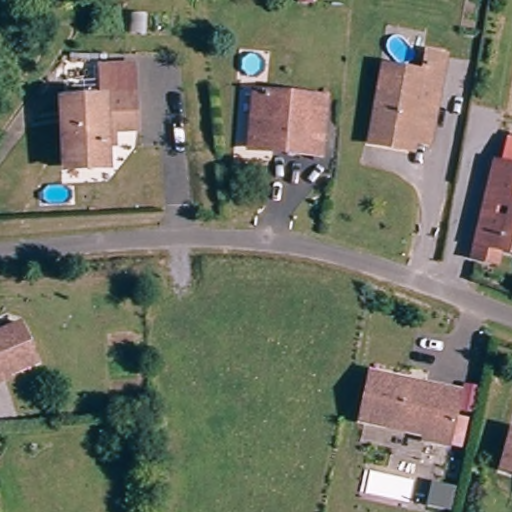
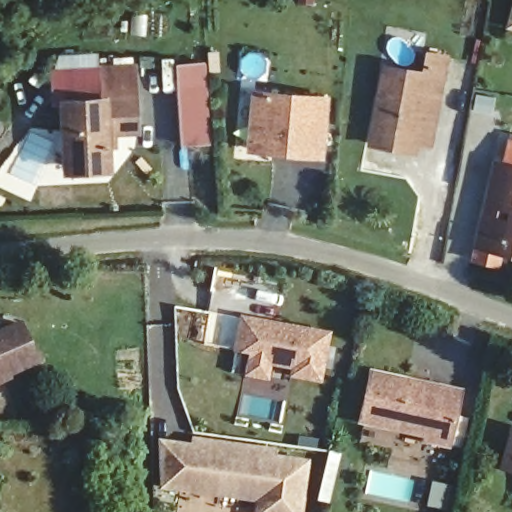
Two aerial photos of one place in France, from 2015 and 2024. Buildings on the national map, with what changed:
new [(506,27),(512,2),(512,29),(506,27)]
new [(207,60),(207,51),(217,50),(220,72),(208,72),(211,144),(180,145),(174,62),(207,60)]
unchanged [(372,138),(374,127),(386,61),(428,68),(431,52),(446,54),(437,102),(431,138),(415,135),(414,145),(372,138)]
unchanged [(58,97),(96,92),(97,64),(138,62),(142,131),(114,134),(115,169),(61,171),(58,97)]
new [(51,105),(49,68),(97,66),(96,92),(58,97),(59,105),(51,105)]
unchanged [(257,148),(261,90),(330,97),(326,155),(307,153),(280,150),(257,148)]
unchanged [(507,136),(512,137),(512,172),(501,170),(507,136)]
unchanged [(505,251),(502,263),(477,258),(480,243),(495,169),(501,170),(512,172),(512,253),(505,251)]
new [(291,379),(293,372),(273,367),(269,382),(246,377),(250,357),(235,354),(242,317),(332,333),(323,386),(291,379)]
unchanged [(44,358),(0,377),(0,331),(26,320),(44,358)]
unchanged [(455,445),(441,442),(415,437),(417,430),(356,418),(366,370),(400,377),(416,381),(453,388),(447,415),(461,418),(455,445)]
unchanged [(458,382),(473,385),(467,410),(452,407),(458,382)]
unchanged [(499,457),(508,420),(512,421),(512,460),(499,457)]
new [(255,504),(155,490),(161,442),(192,445),(193,439),(279,450),(278,456),(311,462),(303,512),(254,512),(255,504)]

